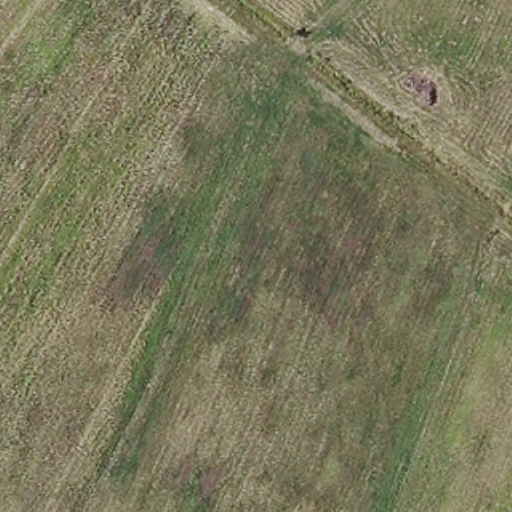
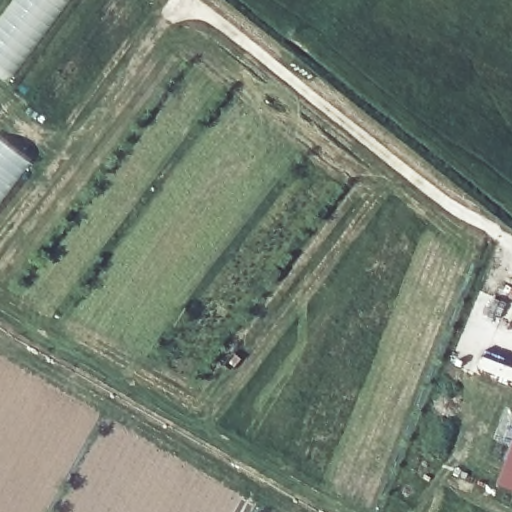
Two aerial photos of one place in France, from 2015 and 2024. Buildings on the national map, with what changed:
new [(10,0),(69,0),(49,28),(5,83),(0,79),(0,14),(10,0)]
new [(29,163),(0,202),(0,141),(29,163)]

